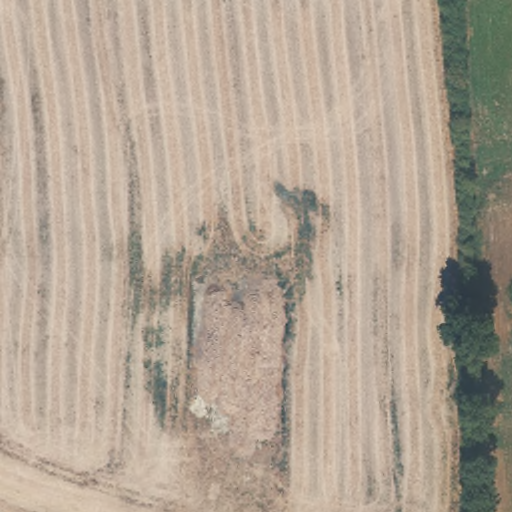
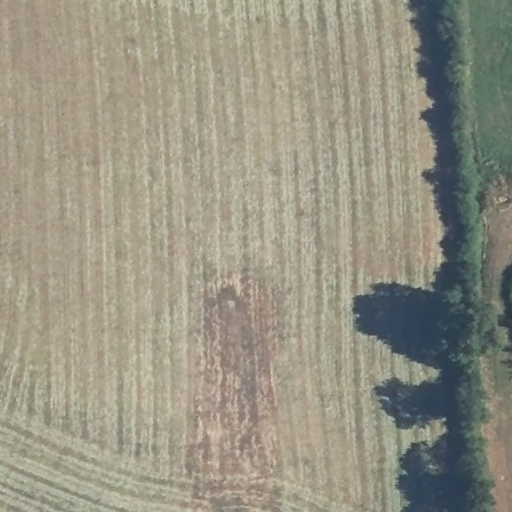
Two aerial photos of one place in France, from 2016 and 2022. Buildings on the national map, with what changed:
[]

